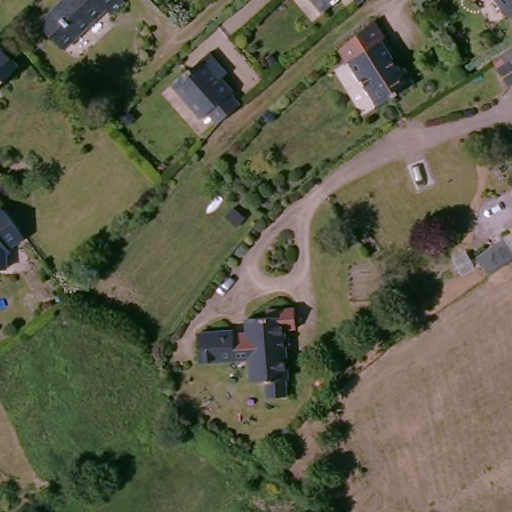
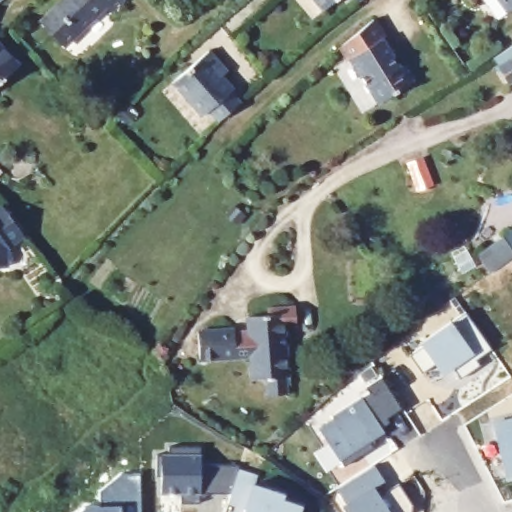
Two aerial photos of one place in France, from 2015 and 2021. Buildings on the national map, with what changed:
unchanged [(111,20),(103,13),(63,54),(39,29),(69,0),(118,0),(124,7),(111,20)]
unchanged [(312,0),(338,0),(322,13),(312,0)]
unchanged [(357,4),(354,0),(363,0),(358,4),(357,4)]
unchanged [(469,0),(476,0),(471,4),(469,0)]
unchanged [(492,0),(512,0),(512,14),(506,19),(492,0)]
unchanged [(364,36),(371,30),(383,48),(380,50),(397,78),(401,75),(411,92),(379,114),(340,56),(364,36)]
unchanged [(23,68),(0,90),(0,45),(1,44),(23,68)]
unchanged [(223,73),(218,77),(237,96),(234,98),(245,109),(240,114),(224,129),(214,118),(207,125),(174,90),(208,58),(223,73)]
unchanged [(512,94),(503,79),(498,70),(512,61),(512,94)]
unchanged [(2,239),(3,260),(0,261),(0,200),(6,209),(14,219),(17,223),(2,239)]
unchanged [(512,247),(488,260),(482,248),(512,232),(512,247)]
new [(421,346),(419,343),(463,312),(489,349),(474,360),(478,366),(459,379),(450,367),(441,373),(434,364),(420,374),(407,356),(421,346)]
unchanged [(266,406),(264,388),(251,389),(249,361),(234,363),(234,368),(198,370),(196,343),(232,340),(232,345),(247,344),(246,328),(266,327),(266,319),(293,318),(295,337),(282,338),(286,387),(284,387),(286,404),(266,406)]
new [(334,421),(332,418),(369,395),(365,389),(381,379),(402,412),(387,421),(390,425),(381,431),(383,434),(369,443),(374,450),(344,469),(319,431),(334,421)]
new [(512,476),(506,477),(493,423),(512,419),(512,476)]
new [(201,464),(239,466),(235,476),(228,496),(201,494),(200,507),(180,506),(180,493),(161,494),(160,479),(156,479),(155,456),(167,455),(167,447),(200,446),(201,464)]
new [(237,468),(255,474),(252,483),(284,493),(282,499),(301,505),(299,512),(243,512),(244,508),(226,502),(237,468)]

